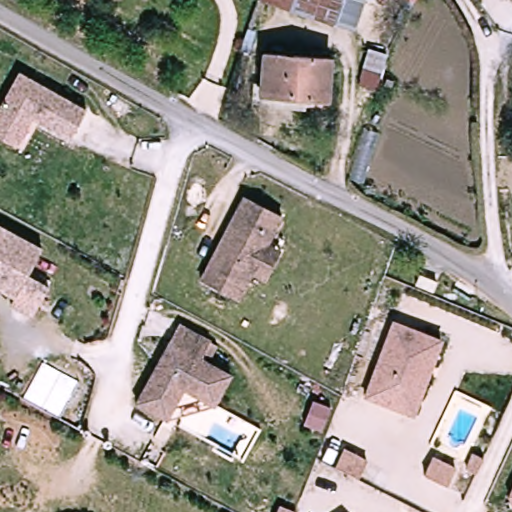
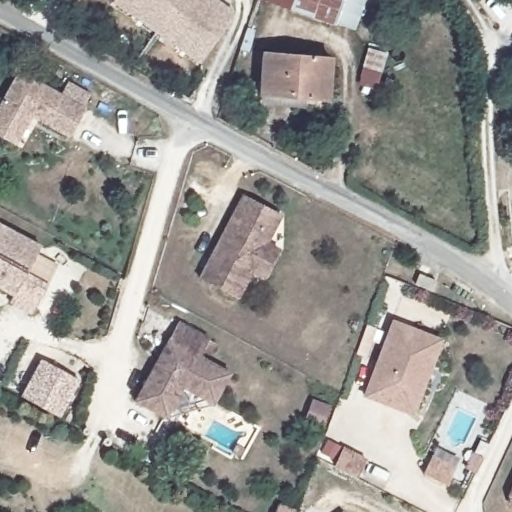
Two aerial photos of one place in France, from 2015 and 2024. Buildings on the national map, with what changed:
new [(234,12),(199,63),(112,2),(114,0),(216,0),(234,12)]
unchanged [(358,28),(281,0),(368,0),(358,28)]
unchanged [(390,49),(375,92),(362,91),(370,46),(390,49)]
unchanged [(262,104),(263,96),(265,52),(330,54),(331,97),(306,97),(306,106),(262,104)]
unchanged [(13,140),(0,131),(0,117),(27,71),(90,108),(74,141),(37,117),(22,145),(13,140)]
unchanged [(246,297),(208,278),(250,198),(288,217),(274,244),(286,251),(270,281),(258,274),(246,297)]
unchanged [(1,224),(48,251),(33,278),(55,290),(38,318),(17,306),(20,299),(0,288),(0,226),(1,224)]
unchanged [(366,397),(392,323),(427,335),(441,340),(427,379),(414,415),(366,397)]
unchanged [(218,404),(189,387),(170,419),(142,402),(188,325),(216,342),(207,357),(236,374),(218,404)]
new [(80,380),(60,417),(21,394),(40,359),(80,380)]
unchanged [(342,450),(365,462),(355,480),(334,468),(342,450)]
unchanged [(457,470),(463,455),(475,461),(468,475),(457,470)]
unchanged [(418,475),(428,458),(450,470),(440,488),(418,475)]
unchanged [(512,487),(512,507),(507,496),(512,487)]
unchanged [(293,511),(293,512),(275,512),(276,506),(293,511)]

